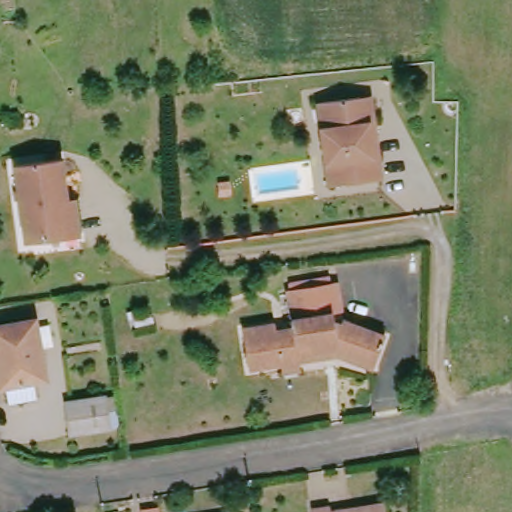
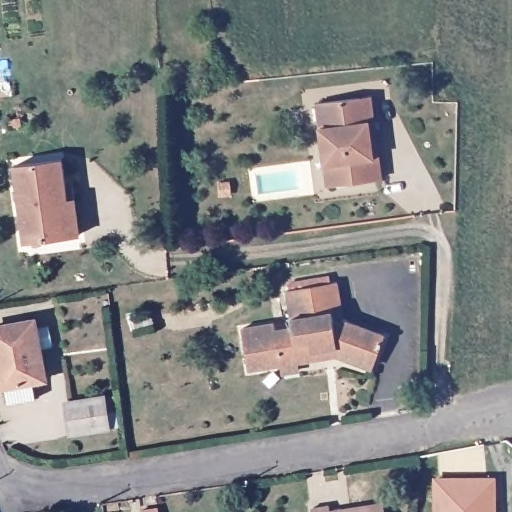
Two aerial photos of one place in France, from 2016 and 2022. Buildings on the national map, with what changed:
unchanged [(325,188),(313,108),(356,101),(367,98),(374,139),(380,180),(325,188)]
unchanged [(77,236),(61,238),(22,244),(12,168),(59,162),(62,185),(71,184),(77,236)]
unchanged [(245,366),(239,325),(271,320),(273,335),(289,332),(282,287),(333,279),(337,308),(328,310),(329,318),(340,322),(341,318),(383,331),(373,363),(345,353),(344,356),(331,351),(294,358),(277,360),(245,366)]
unchanged [(27,317),(37,376),(25,378),(28,396),(0,401),(0,321),(27,317)]
unchanged [(103,401),(107,433),(69,439),(66,407),(72,406),(103,401)]
new [(498,512),(433,512),(434,478),(498,480),(498,512)]
unchanged [(329,512),(318,512),(329,511),(329,512)]
unchanged [(381,512),(373,512),(381,511),(381,512)]

